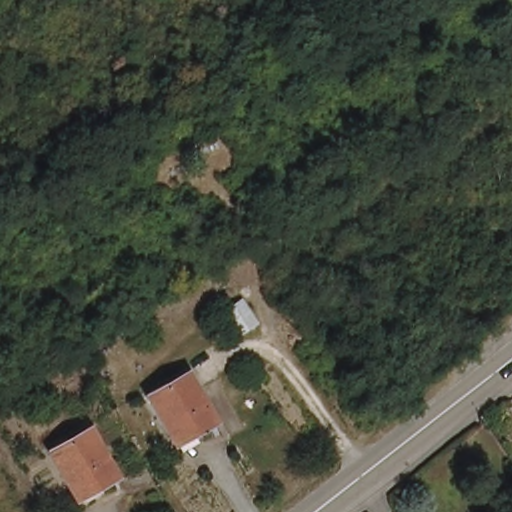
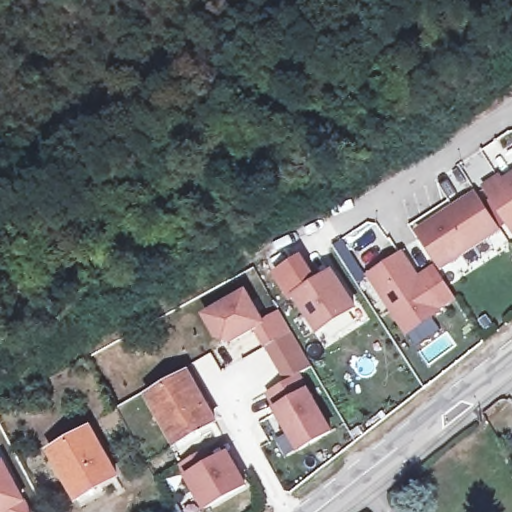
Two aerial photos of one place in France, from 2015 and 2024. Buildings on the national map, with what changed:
new [(503,178),(512,173),(512,230),(483,188),(500,175),(503,178)]
new [(502,232),(441,271),(415,232),(475,192),(502,232)]
new [(363,275),(395,255),(410,281),(430,269),(448,298),(429,310),(431,314),(400,333),(363,275)]
new [(334,270),(360,308),(318,335),(292,297),(334,270)]
new [(265,324),(282,314),(293,332),(267,347),(256,328),(232,342),(219,338),(207,317),(247,294),(265,324)]
new [(291,333),(312,367),(285,383),(265,349),(291,333)]
new [(332,432),(300,450),(277,409),(278,409),(269,393),(299,375),(332,432)]
unchanged [(216,425),(171,443),(151,395),(196,379),(216,425)]
unchanged [(118,482),(76,501),(51,453),(92,434),(118,482)]
new [(181,465),(207,450),(215,463),(229,455),(247,486),(207,509),(181,465)]
new [(29,512),(0,512),(0,469),(5,466),(29,512)]

